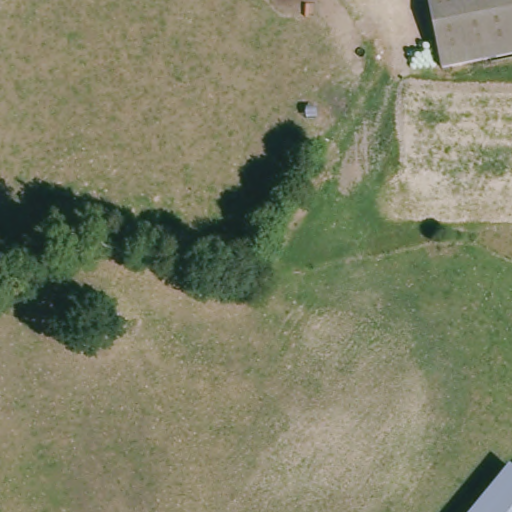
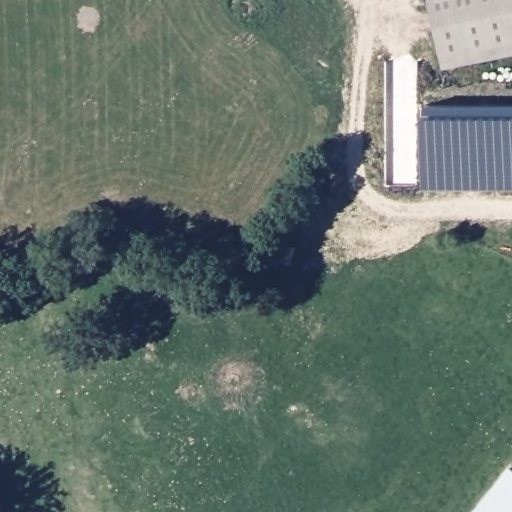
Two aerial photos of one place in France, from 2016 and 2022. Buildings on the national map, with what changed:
unchanged [(453,66),(439,0),(512,0),(512,55),(453,66)]
new [(426,187),(426,104),(512,103),(512,187),(426,187)]
unchanged [(481,512),(512,474),(512,512),(481,512)]

